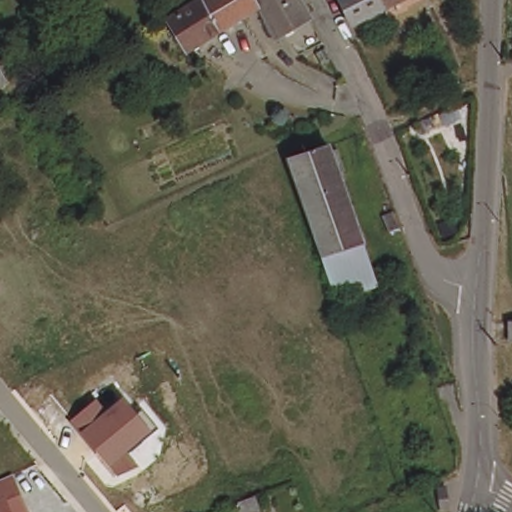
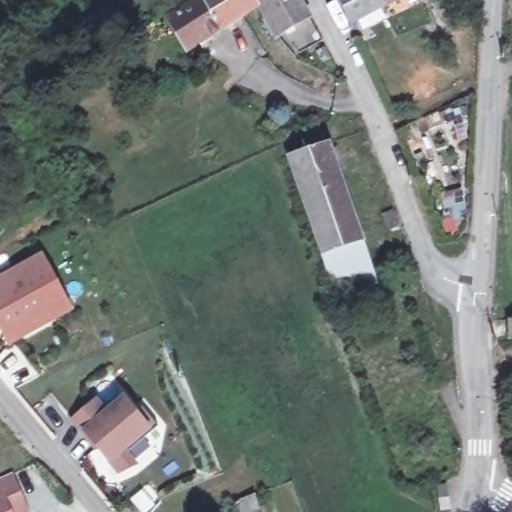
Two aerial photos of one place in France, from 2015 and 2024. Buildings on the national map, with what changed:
unchanged [(161,15),(186,2),(190,0),(248,0),(252,8),(202,34),(179,47),(161,15)]
unchanged [(248,0),(294,0),(313,32),(280,50),(269,37),(252,8),(248,0)]
unchanged [(384,6),(351,22),(341,0),(381,0),(384,6)]
unchanged [(381,0),(397,0),(384,6),(381,0)]
unchanged [(0,78),(0,71),(3,76),(0,78)]
unchanged [(462,119),(447,127),(442,125),(423,133),(419,121),(457,105),(462,119)]
unchanged [(329,259),(295,157),(330,143),(365,246),(329,259)]
unchanged [(398,213),(405,231),(394,235),(387,217),(398,213)]
unchanged [(365,246),(379,285),(342,299),(329,259),(365,246)]
new [(67,307),(7,340),(0,328),(0,276),(39,255),(67,307)]
unchanged [(504,323),(512,323),(512,342),(502,341),(504,323)]
unchanged [(106,410),(123,395),(137,412),(142,408),(159,428),(130,453),(140,467),(117,476),(110,465),(69,420),(97,398),(106,410)]
unchanged [(29,512),(0,512),(0,478),(13,473),(29,512)]
unchanged [(444,484),(447,504),(440,506),(437,486),(444,484)]
unchanged [(238,511),(232,495),(250,489),(256,504),(238,511)]

